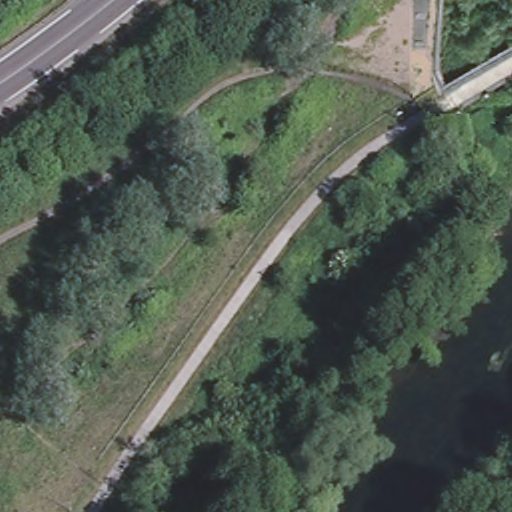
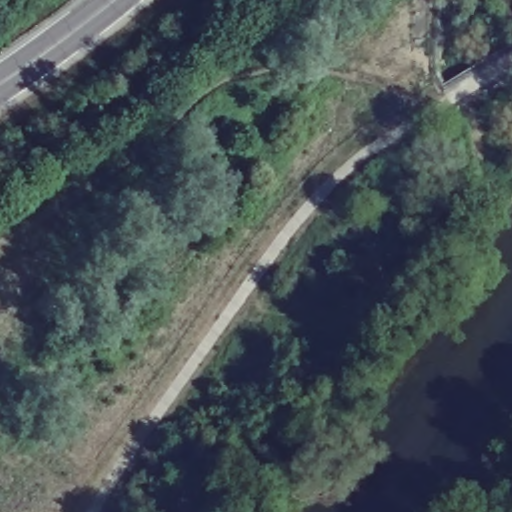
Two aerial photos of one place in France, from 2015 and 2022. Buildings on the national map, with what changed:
unchanged [(258,410),(278,428),(257,450),(238,435),(258,410)]

